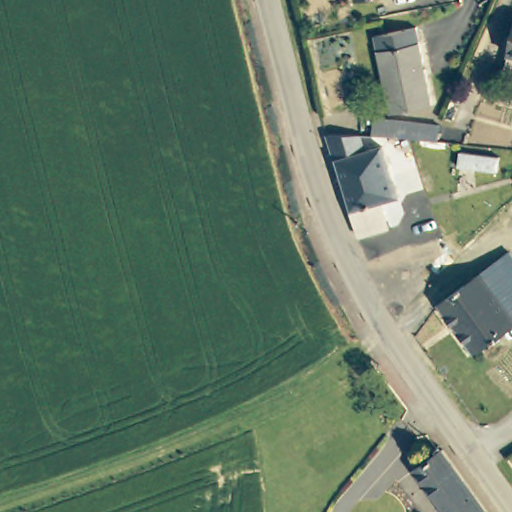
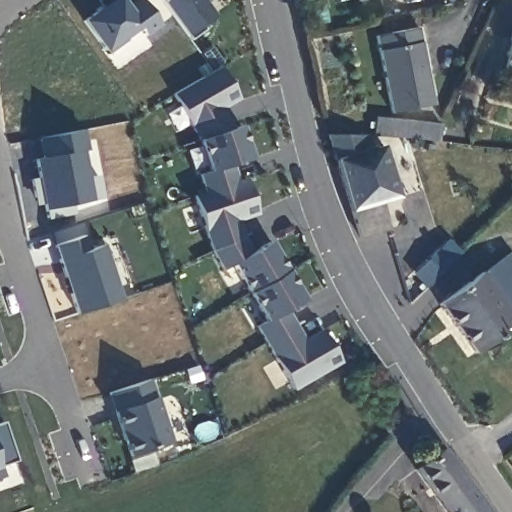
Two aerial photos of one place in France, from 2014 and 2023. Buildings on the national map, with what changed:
new [(101,7),(95,0),(122,0),(127,7),(137,0),(144,0),(160,23),(145,34),(138,25),(124,35),(127,39),(108,53),(84,20),(101,7)]
new [(217,16),(189,38),(162,0),(204,0),(217,16)]
unchanged [(375,36),(417,27),(432,105),(390,114),(375,36)]
unchanged [(507,54),(512,37),(512,56),(507,54)]
new [(238,101),(220,111),(231,129),(242,127),(250,159),(233,165),(237,179),(244,177),(258,217),(240,222),(244,237),(252,250),(269,240),(302,300),(288,308),(305,338),(320,329),(341,363),(293,392),(255,326),(262,320),(231,265),(222,271),(211,251),(193,195),(203,191),(197,172),(206,170),(197,138),(172,93),(221,66),(238,101)]
unchanged [(375,118),(441,126),(435,140),(430,140),(412,138),(379,136),(373,135),(375,118)]
new [(83,129),(92,175),(98,174),(103,198),(74,203),(75,211),(48,216),(44,195),(36,197),(32,178),(40,176),(36,158),(44,157),(40,137),(83,129)]
unchanged [(329,162),(321,135),(327,135),(358,135),(365,135),(373,135),(379,136),(388,166),(409,160),(417,188),(397,194),(406,223),(359,238),(335,160),(329,162)]
new [(77,313),(55,244),(83,234),(87,249),(103,243),(120,298),(77,313)]
unchanged [(497,262),(512,282),(512,324),(474,353),(439,304),(497,262)]
new [(151,380),(171,443),(129,456),(108,393),(151,380)]
new [(5,478),(0,480),(0,423),(3,422),(15,460),(1,467),(5,478)]
unchanged [(442,444),(491,512),(449,512),(414,463),(442,444)]

